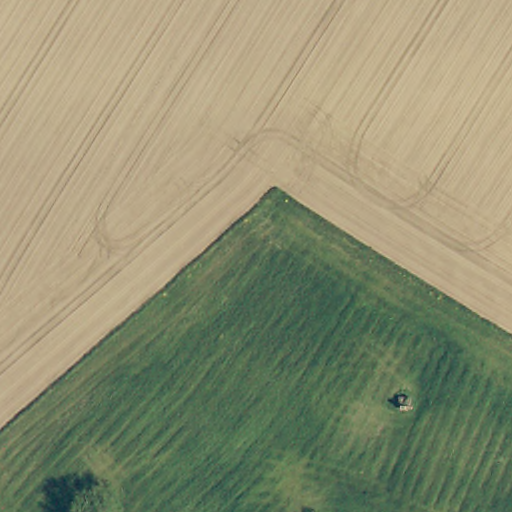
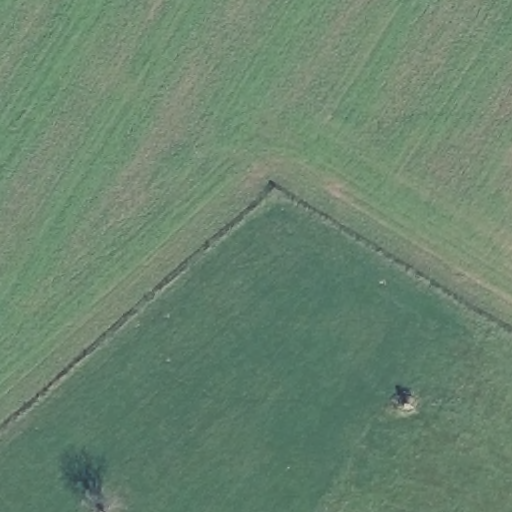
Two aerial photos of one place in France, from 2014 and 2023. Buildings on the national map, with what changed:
unchanged [(396,389),(407,391),(407,399),(406,415),(393,413),(396,389)]

